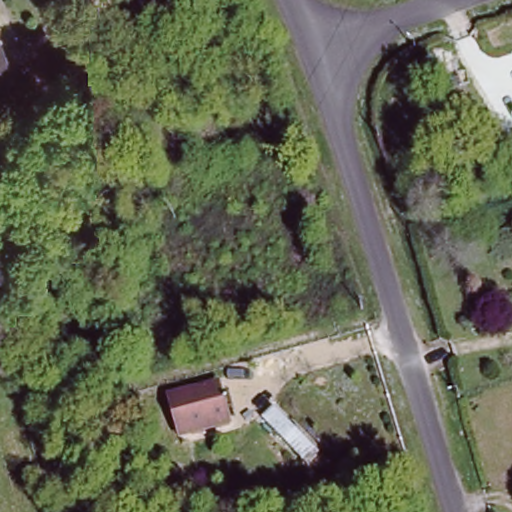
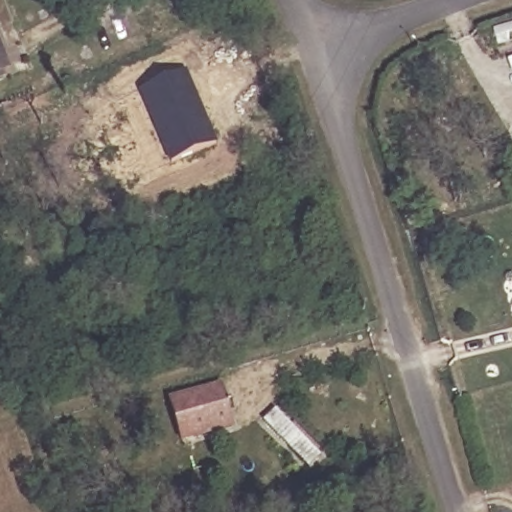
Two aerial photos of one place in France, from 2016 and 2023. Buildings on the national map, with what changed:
unchanged [(0,67),(0,51),(5,65),(0,67)]
new [(181,71),(212,142),(168,161),(137,90),(181,71)]
unchanged [(172,398),(184,394),(221,383),(233,424),(195,435),(183,439),(172,398)]
unchanged [(264,422),(275,410),(321,452),(309,469),(264,422)]

